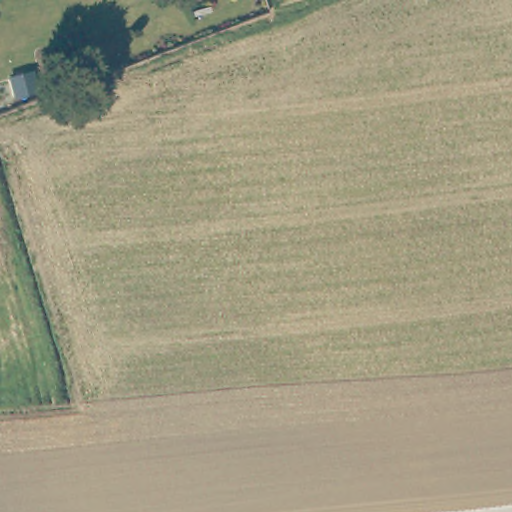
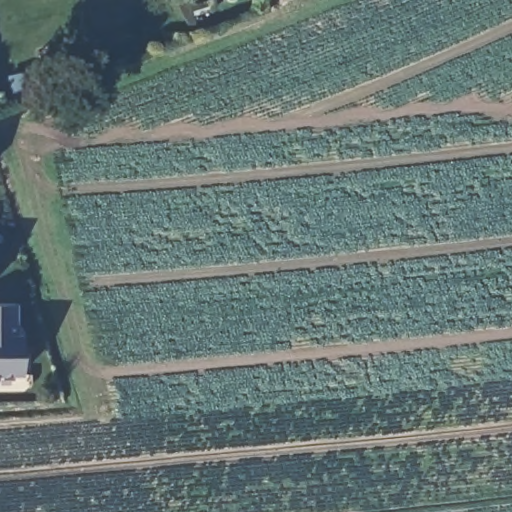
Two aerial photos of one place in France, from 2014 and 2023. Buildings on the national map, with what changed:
new [(18,335),(22,336),(20,376),(0,377),(0,305),(19,305),(18,335)]

